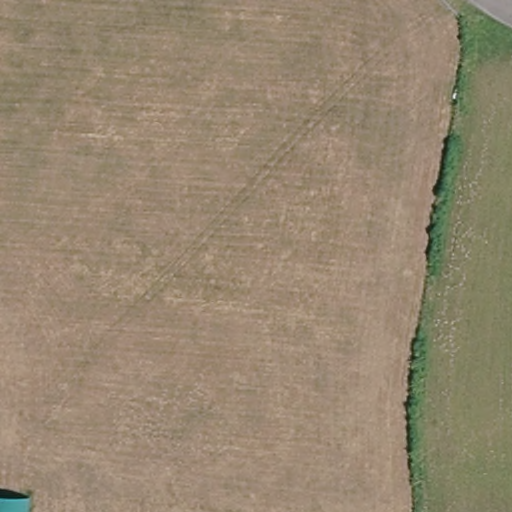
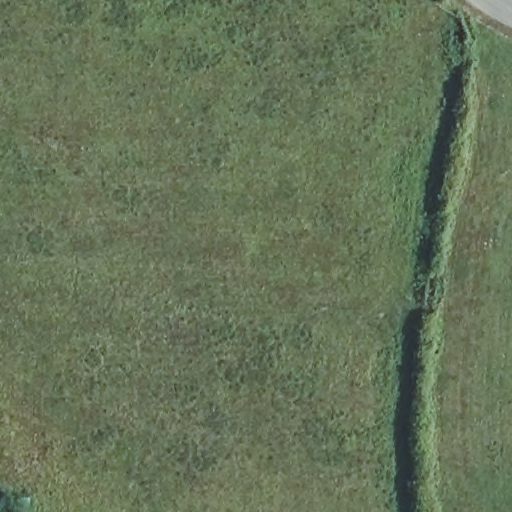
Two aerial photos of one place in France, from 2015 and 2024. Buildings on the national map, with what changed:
unchanged [(28,512),(0,512),(0,497),(29,498),(28,512)]

